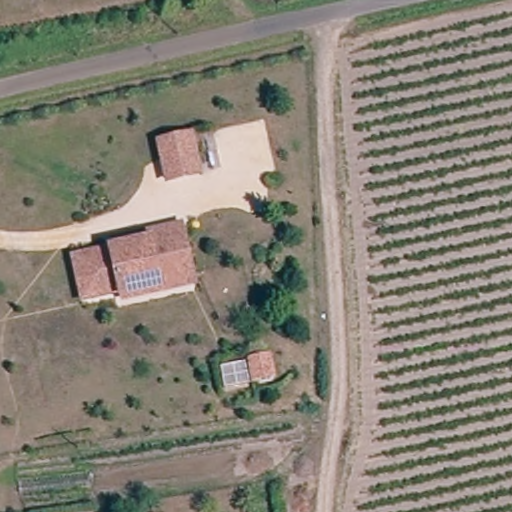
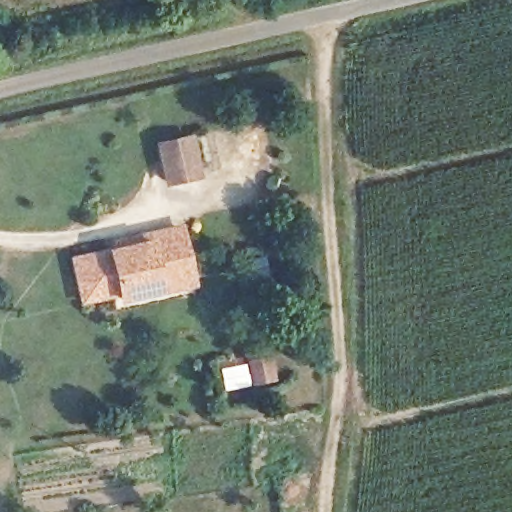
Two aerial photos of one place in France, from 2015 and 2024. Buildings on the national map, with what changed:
unchanged [(196,166),(166,175),(156,140),(188,132),(196,166)]
unchanged [(165,283),(119,295),(116,286),(82,296),(71,255),(111,245),(110,237),(139,228),(177,219),(187,257),(191,276),(165,283)]

